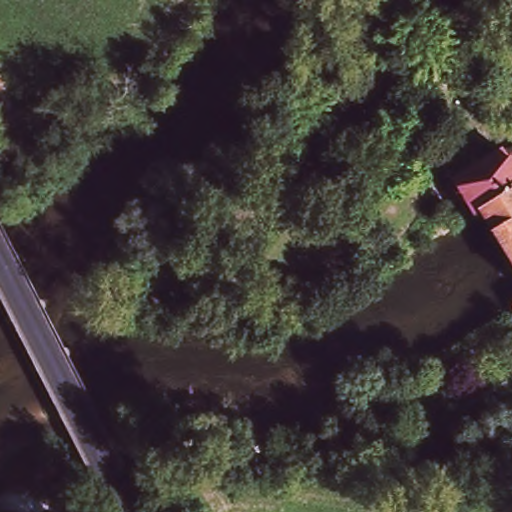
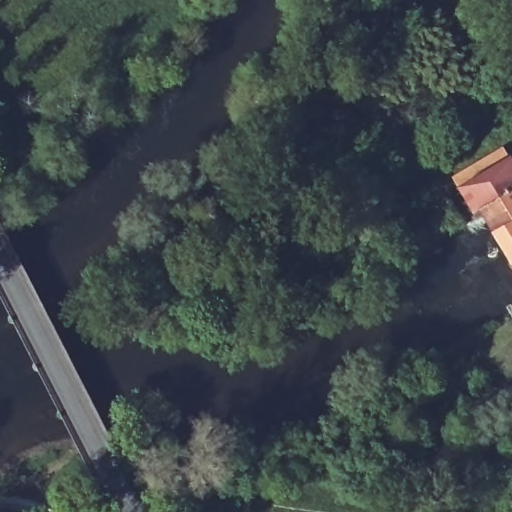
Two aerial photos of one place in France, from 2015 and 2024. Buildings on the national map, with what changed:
unchanged [(485,214),(478,218),(460,190),(510,157),(512,164),(512,258),(485,214)]

